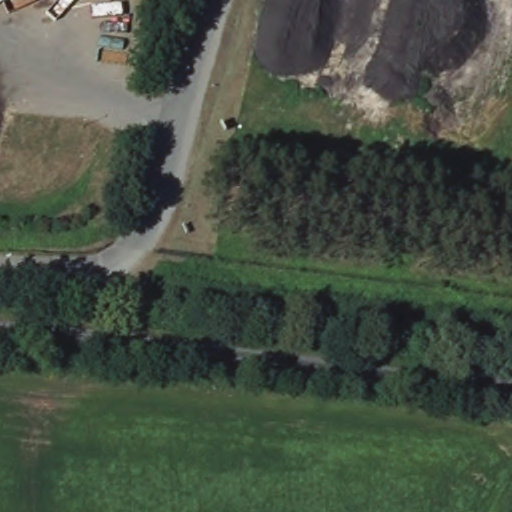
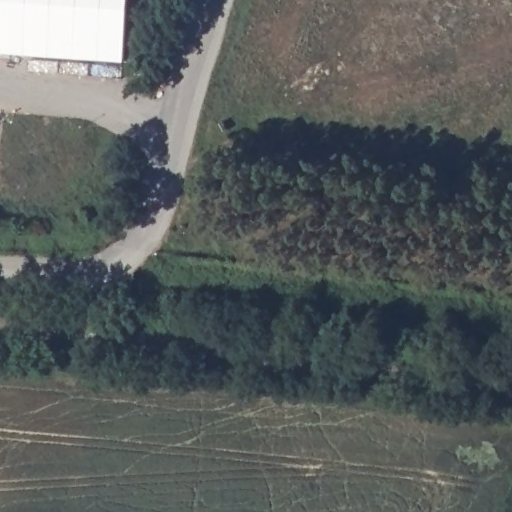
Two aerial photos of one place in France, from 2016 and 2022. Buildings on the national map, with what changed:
new [(129,0),(124,61),(0,53),(0,39),(3,0),(129,0)]

